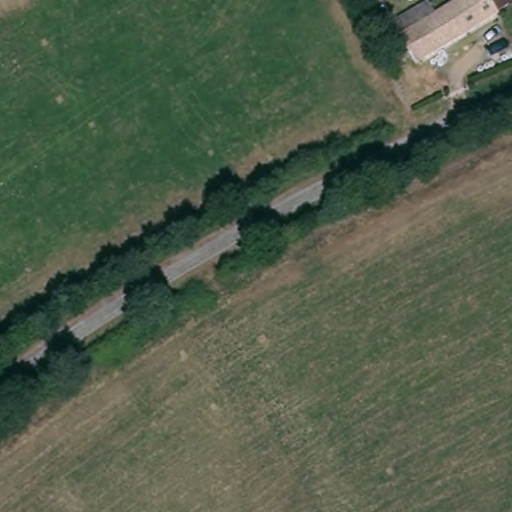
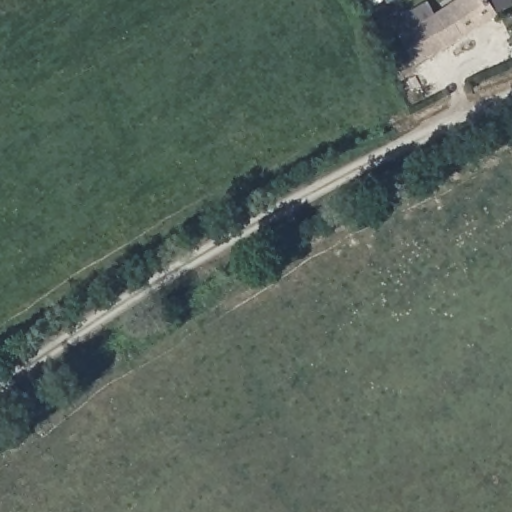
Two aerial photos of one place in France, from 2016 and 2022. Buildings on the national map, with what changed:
unchanged [(450,0),(495,0),(501,11),(482,22),(417,62),(390,20),(423,0),(426,0),(432,11),(450,0)]

